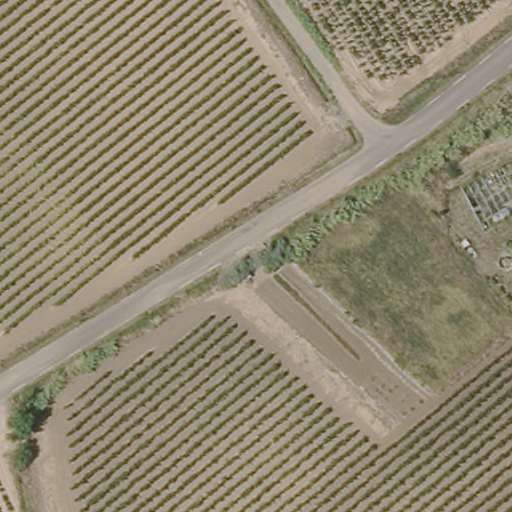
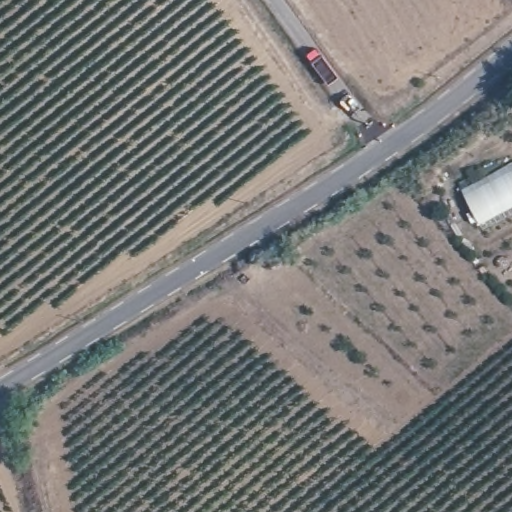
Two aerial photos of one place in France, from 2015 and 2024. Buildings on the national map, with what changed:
new [(480,225),(462,191),(512,165),(512,209),(480,225)]

